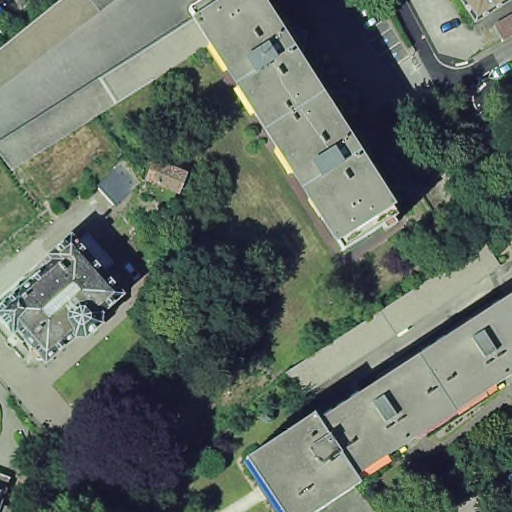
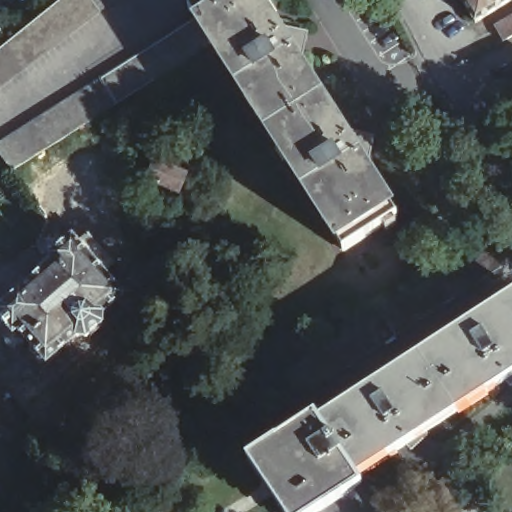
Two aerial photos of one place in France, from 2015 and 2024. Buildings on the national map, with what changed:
unchanged [(5,45),(6,45),(16,37),(22,32),(26,28),(38,19),(48,11),(54,5),(59,2),(62,0),(115,0),(111,3),(100,11),(98,13),(89,19),(78,28),(68,36),(56,44),(45,53),(35,61),(24,70),(13,79),(2,87),(0,88),(0,50),(5,45)]
unchanged [(60,96),(71,89),(83,81),(94,74),(106,66),(118,59),(129,51),(133,49),(141,44),(153,36),(164,29),(176,21),(191,12),(186,5),(195,0),(257,0),(259,4),(261,4),(276,29),(281,26),(298,30),(294,47),(290,49),(306,75),(305,75),(316,91),(263,125),(253,109),(258,105),(213,35),(208,39),(206,38),(193,47),(181,54),(169,62),(158,69),(153,73),(146,77),(134,84),(123,91),(111,99),(99,106),(92,111),(88,114),(76,121),(65,129),(56,134),(53,136),(41,144),(30,151),(18,158),(8,165),(0,155),(0,134),(2,133),(13,125),(25,118),(37,111),(48,104),(60,96)]
unchanged [(466,0),(512,0),(512,3),(481,23),(466,0)]
unchanged [(512,36),(504,41),(494,25),(512,16),(512,36)]
unchanged [(316,91),(326,108),(327,106),(343,132),(347,129),(364,133),(361,150),(356,153),(373,178),(371,179),(392,212),(339,245),(319,212),(324,209),(279,138),(274,141),(263,125),(316,91)]
unchanged [(156,160),(188,174),(179,193),(147,179),(156,160)]
unchanged [(121,164),(141,184),(118,205),(98,185),(121,164)]
unchanged [(20,289),(29,282),(54,259),(49,254),(73,234),(79,242),(88,234),(114,263),(105,272),(124,294),(103,313),(103,323),(86,337),(77,337),(76,336),(47,362),(44,359),(43,360),(38,360),(30,351),(30,347),(33,346),(27,339),(23,343),(13,333),(4,322),(0,317),(0,307),(20,289)]
unchanged [(345,334),(357,327),(369,319),(381,311),(393,304),(404,296),(416,289),(427,280),(439,273),(450,265),(462,258),(474,250),(486,243),(501,265),(489,273),(477,281),(466,289),(454,296),(443,304),(431,311),(419,319),(408,326),(396,334),(384,342),(373,349),(361,357),(349,364),(338,372),(326,379),(314,387),(302,396),(286,373),(299,364),(311,357),(322,349),(334,342),(345,334)]
unchanged [(512,288),(512,365),(449,407),(412,351),(511,285),(512,288)]
unchanged [(349,472),(312,416),(412,351),(449,407),(349,472)]
unchanged [(302,512),(288,512),(246,449),(308,409),(312,416),(349,472),(354,478),(302,512)]
unchanged [(5,483),(0,498),(0,481),(5,483)]

